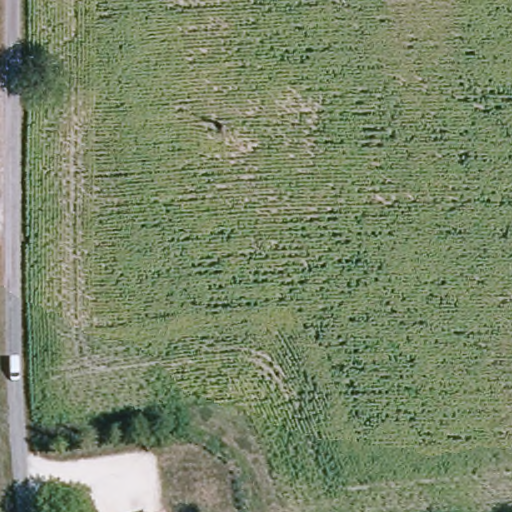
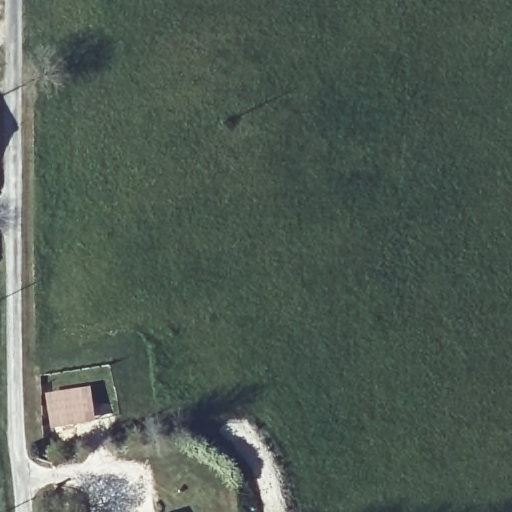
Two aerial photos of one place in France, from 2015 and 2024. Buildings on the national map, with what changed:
new [(45,394),(91,388),(96,422),(52,429),(45,394)]

